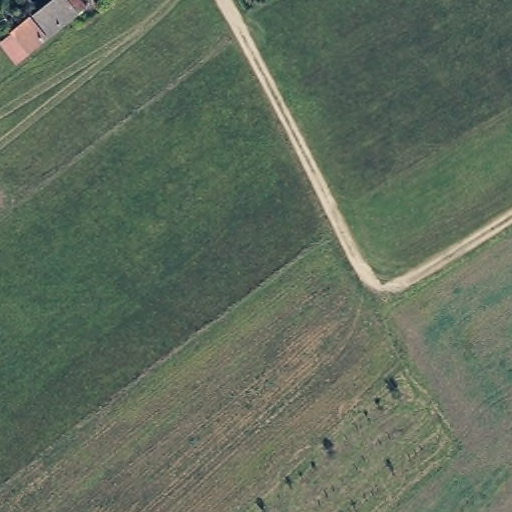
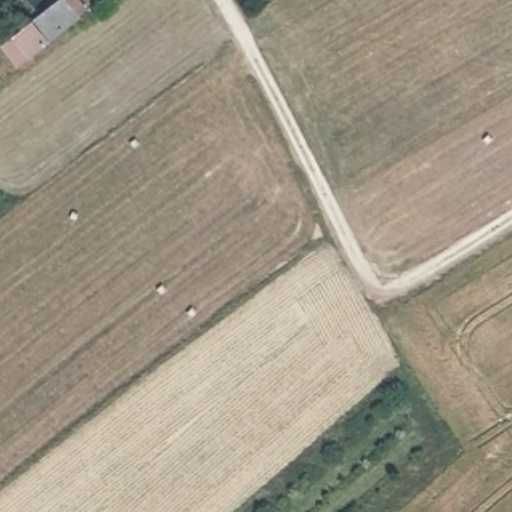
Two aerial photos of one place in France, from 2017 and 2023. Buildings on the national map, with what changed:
unchanged [(25,61),(8,38),(57,0),(75,21),(25,61)]

